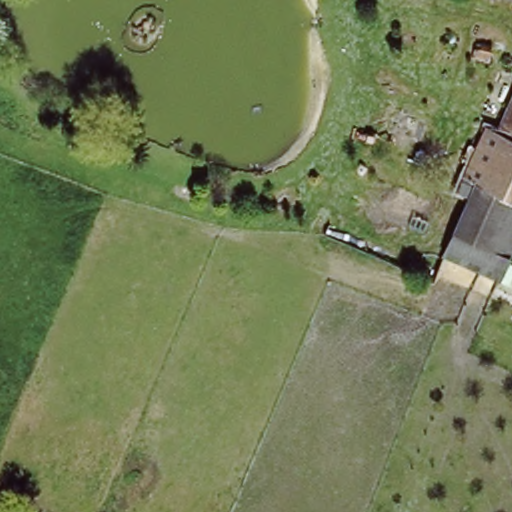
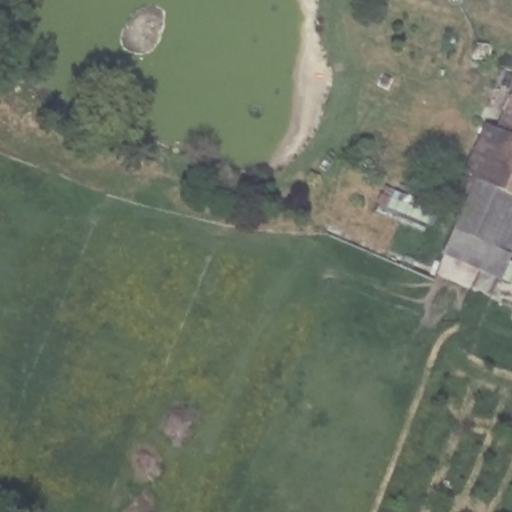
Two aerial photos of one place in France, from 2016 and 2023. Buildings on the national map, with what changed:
unchanged [(492,51),(490,66),(473,63),(475,49),(492,51)]
unchanged [(510,204),(471,188),(461,183),(494,110),(502,114),(512,95),(512,201),(510,204)]
unchanged [(510,204),(512,205),(512,238),(503,259),(495,255),(485,278),(440,257),(471,188),(510,204)]

